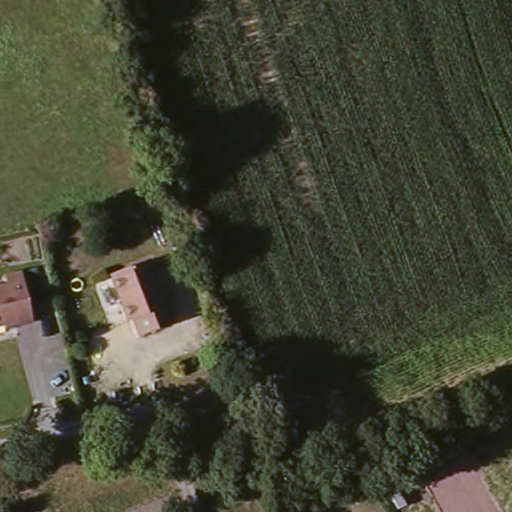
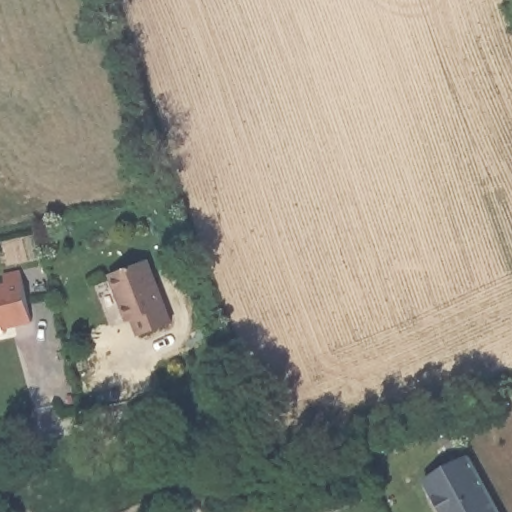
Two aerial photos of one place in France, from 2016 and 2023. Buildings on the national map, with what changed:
unchanged [(151,259),(176,321),(144,335),(137,319),(132,321),(114,276),(151,259)]
unchanged [(7,288),(5,277),(22,273),(34,323),(17,328),(16,324),(0,328),(0,290),(7,288)]
new [(467,456),(499,512),(440,512),(425,482),(467,456)]
demolished [(288,489),(297,512),(271,512),(266,496),(288,489)]

